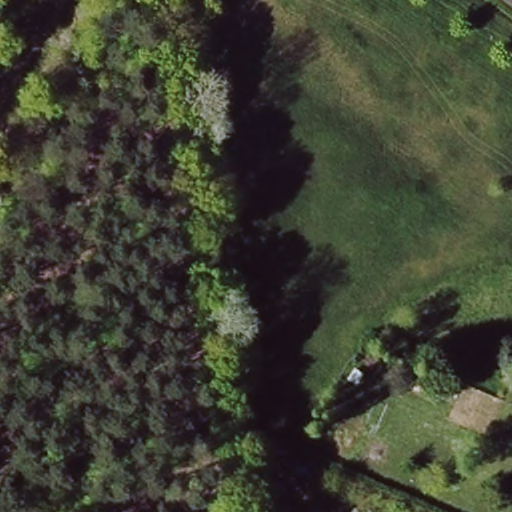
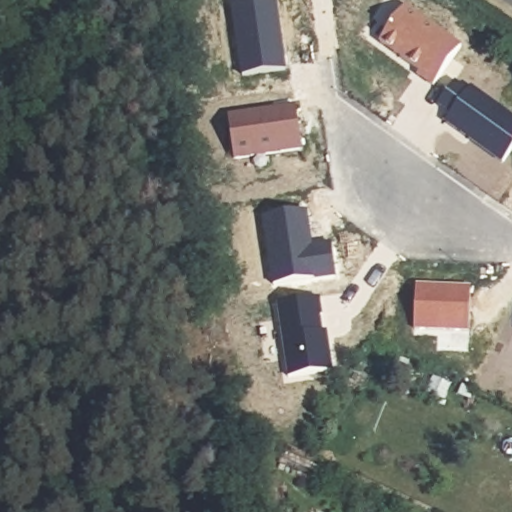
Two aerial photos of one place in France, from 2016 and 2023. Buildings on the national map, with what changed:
new [(405,7),(461,47),(434,85),(418,75),(421,70),(381,40),(405,7)]
new [(453,85),(466,94),(471,87),(512,117),(512,151),(503,163),(446,122),(451,114),(438,105),(453,85)]
new [(296,106),(303,150),(234,160),(228,116),(296,106)]
new [(305,210),(309,237),(306,240),(308,247),(331,244),(336,277),(272,286),(261,216),(305,210)]
new [(319,297),(322,315),(320,315),(324,342),(329,341),(333,371),(288,376),(279,303),(319,297)]

